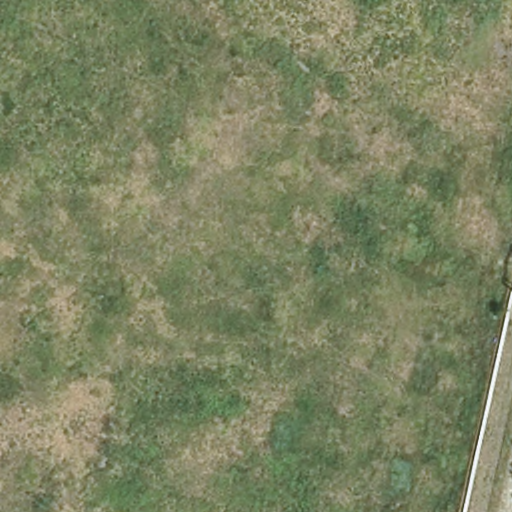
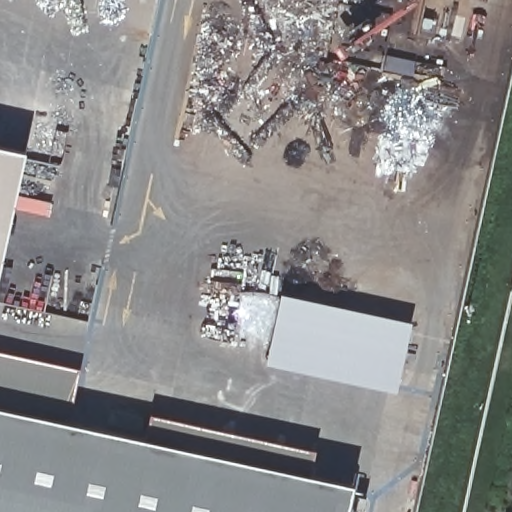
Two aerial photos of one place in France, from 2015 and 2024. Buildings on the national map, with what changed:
new [(450,11),(444,35),(412,28),(419,0),(470,0),(466,15),(450,11)]
new [(0,265),(0,144),(25,150),(0,265)]
new [(408,322),(394,385),(266,355),(280,292),(408,322)]
new [(0,350),(81,368),(70,421),(144,437),(149,413),(316,449),(311,474),(353,483),(347,512),(0,512),(0,350)]

